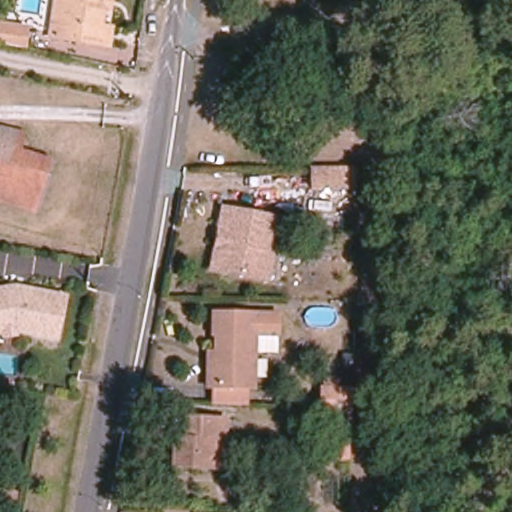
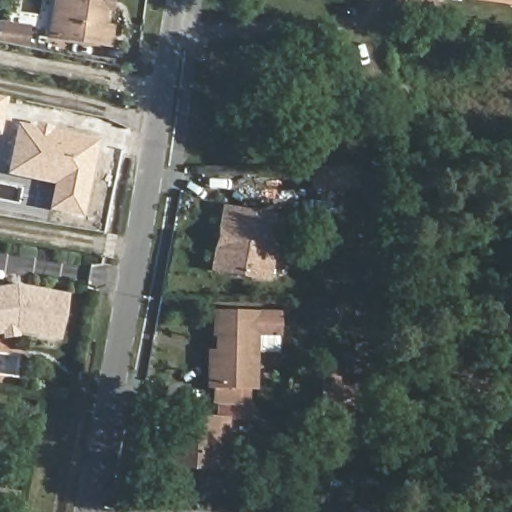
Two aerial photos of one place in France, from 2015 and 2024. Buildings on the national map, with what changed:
unchanged [(111,0),(109,9),(104,8),(101,26),(111,27),(109,44),(60,37),(50,35),(56,0),(111,0)]
new [(432,0),(431,12),(394,8),(394,0),(432,0)]
new [(474,0),(512,0),(512,5),(474,0)]
unchanged [(23,46),(10,44),(0,42),(0,24),(27,27),(25,37),(23,46)]
new [(0,132),(0,96),(7,97),(0,132)]
new [(16,122),(35,126),(35,122),(52,126),(51,129),(97,138),(83,216),(48,210),(53,184),(6,174),(16,122)]
demolished [(18,151),(51,160),(36,211),(0,200),(0,127),(23,134),(18,151)]
unchanged [(313,168),(345,168),(356,168),(356,186),(346,187),(313,187),(313,168)]
unchanged [(268,279),(212,268),(224,207),(279,218),(268,279)]
unchanged [(60,286),(53,326),(11,319),(0,322),(0,280),(11,278),(60,286)]
unchanged [(241,403),(212,401),(212,385),(208,385),(208,352),(215,352),(216,334),(213,334),(214,312),(279,313),(278,334),(274,334),(274,356),(256,356),(255,386),(250,386),(250,404),(241,403)]
unchanged [(324,411),(325,383),(320,383),(320,382),(321,361),(324,361),(324,351),(341,351),(340,361),(353,362),(352,384),(350,414),(324,411)]
unchanged [(225,467),(174,465),(176,417),(228,418),(225,467)]
unchanged [(0,490),(16,492),(14,512),(0,512),(0,490)]

